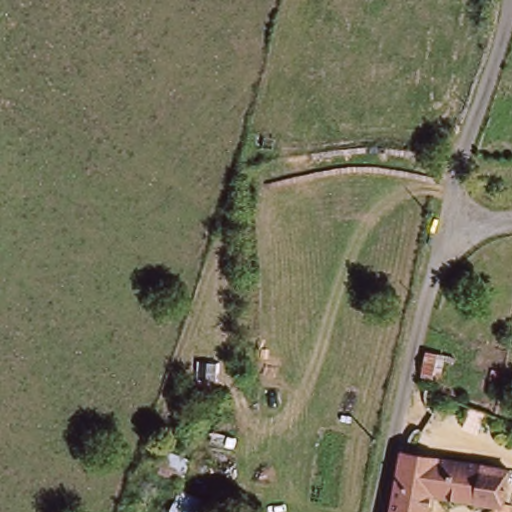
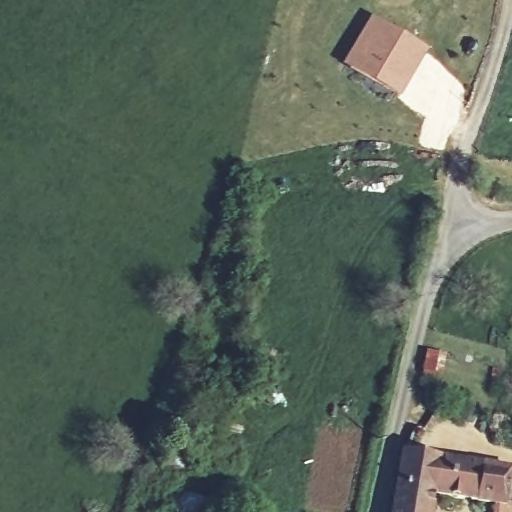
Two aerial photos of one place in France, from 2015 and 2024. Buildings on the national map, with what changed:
new [(398,97),(340,64),(369,12),(426,47),(398,97)]
unchanged [(391,512),(401,452),(504,467),(498,505),(509,507),(508,512),(489,512),(490,503),(431,495),(428,512),(391,512)]

